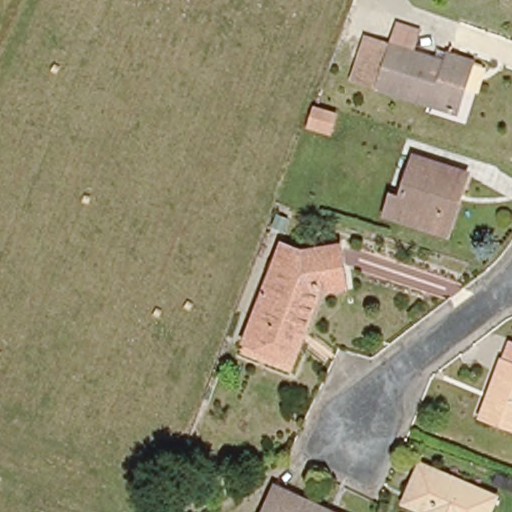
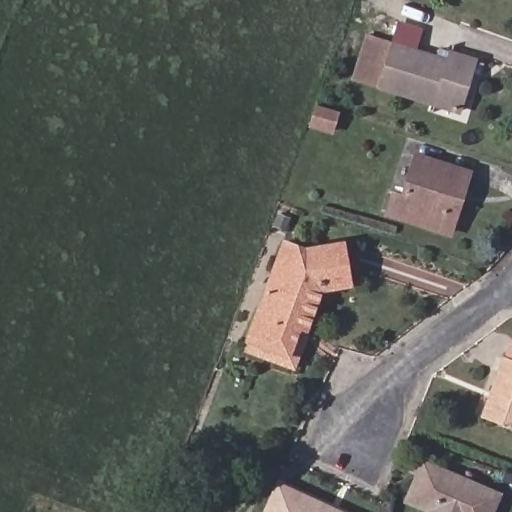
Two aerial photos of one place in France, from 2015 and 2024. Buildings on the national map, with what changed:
unchanged [(392,46),(398,20),(421,30),(418,51),(448,61),(452,52),(486,61),(466,117),(350,85),(365,32),(392,46)]
unchanged [(316,118),(323,100),(345,107),(339,126),(316,118)]
unchanged [(386,213),(394,191),(405,194),(420,155),(472,172),(465,192),(450,234),(441,231),(386,213)]
unchanged [(249,333),(288,348),(296,328),(255,315),(275,263),(285,237),(305,246),(342,237),(350,275),(325,282),(312,317),(306,332),(295,365),(244,346),(249,333)]
unchanged [(512,427),(487,419),(505,362),(512,365),(512,427)]
unchanged [(492,512),(436,512),(436,511),(408,500),(414,487),(422,467),(497,498),(492,512)]
unchanged [(283,482),(300,488),(360,512),(271,512),(275,502),(283,482)]

